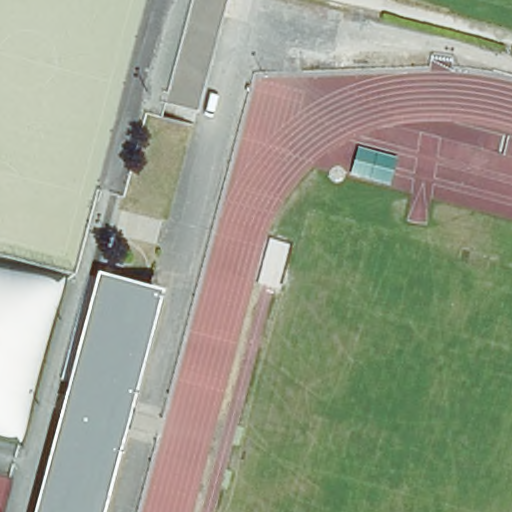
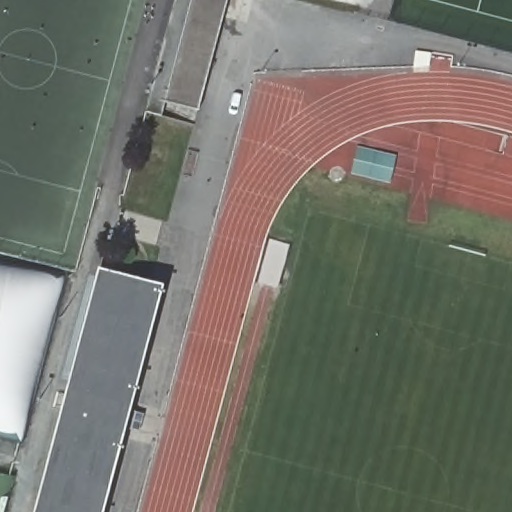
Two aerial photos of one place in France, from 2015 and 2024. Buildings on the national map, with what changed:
unchanged [(185,0),(224,0),(196,107),(162,98),(185,0)]
unchanged [(22,445),(0,439),(0,258),(66,275),(22,445)]
unchanged [(120,275),(151,283),(161,286),(102,512),(39,512),(103,270),(120,275)]

